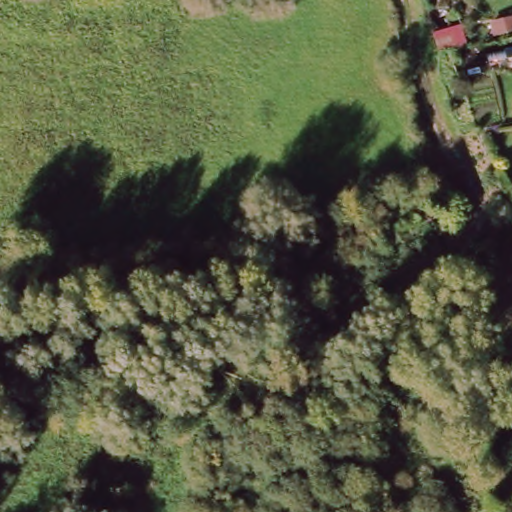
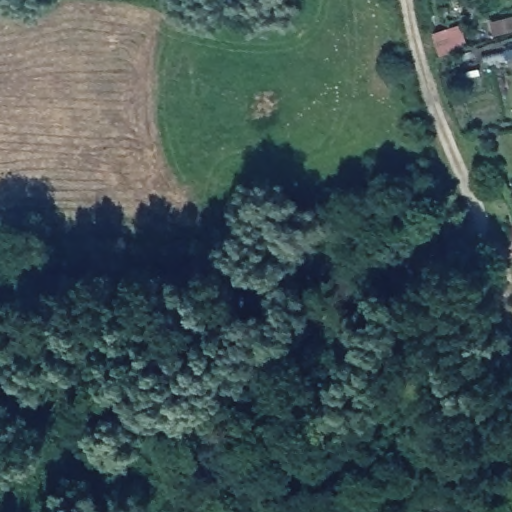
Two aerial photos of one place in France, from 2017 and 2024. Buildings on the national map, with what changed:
unchanged [(437,37),(461,30),(467,49),(442,56),(437,37)]

